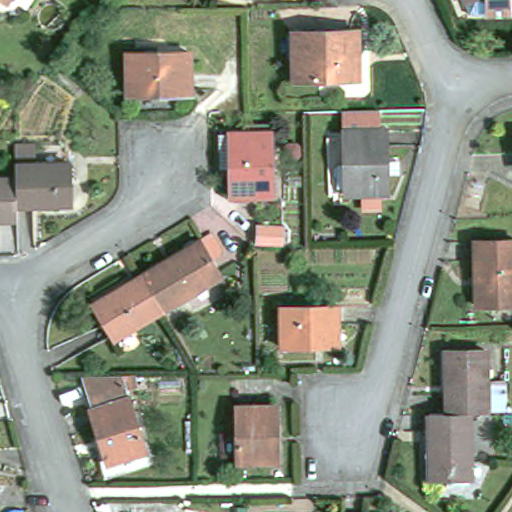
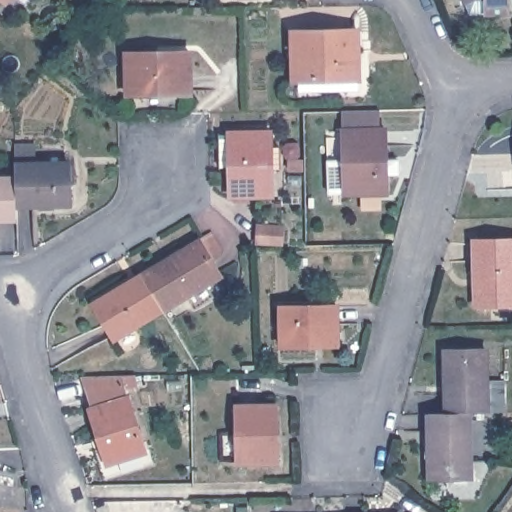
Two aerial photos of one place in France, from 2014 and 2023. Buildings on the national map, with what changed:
unchanged [(8,3),(3,0),(10,0),(8,3)]
unchanged [(508,9),(484,9),(483,0),(508,0),(508,9)]
unchanged [(359,30),(361,79),(296,81),(294,31),(359,30)]
unchanged [(192,51),(193,93),(130,94),(129,53),(192,51)]
unchanged [(388,128),(389,159),(401,159),(401,174),(389,174),(390,193),(347,194),(346,130),(388,128)]
unchanged [(274,131),(274,147),(281,147),(282,169),(275,169),(275,196),(233,196),(231,132),(274,131)]
unchanged [(17,146),(17,144),(35,143),(35,163),(71,162),(71,204),(18,205),(18,177),(17,146)]
unchanged [(0,178),(18,177),(18,205),(18,206),(18,219),(0,219),(0,178)]
unchanged [(285,227),(284,245),(259,243),(260,226),(285,227)]
unchanged [(211,233),(222,251),(221,256),(215,260),(223,276),(165,311),(150,285),(143,274),(211,233)]
unchanged [(512,240),(512,305),(479,306),(476,241),(512,240)]
unchanged [(116,339),(95,303),(143,274),(150,285),(165,311),(116,339)]
unchanged [(340,305),(340,346),(284,346),(283,306),(340,305)]
unchanged [(449,412),(447,350),(488,349),(490,412),(472,412),(449,412)]
unchanged [(130,397),(131,398),(148,451),(108,463),(93,410),(94,406),(85,377),(117,376),(123,376),(130,397)]
unchanged [(240,462),(239,405),(279,405),(280,461),(240,462)]
unchanged [(474,477),(432,478),(432,412),(449,412),(472,412),(474,477)]

